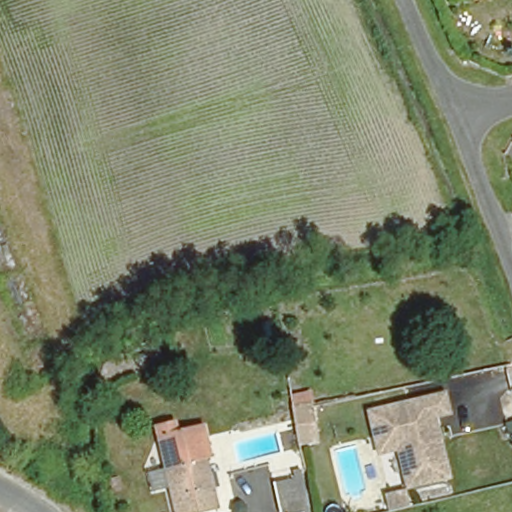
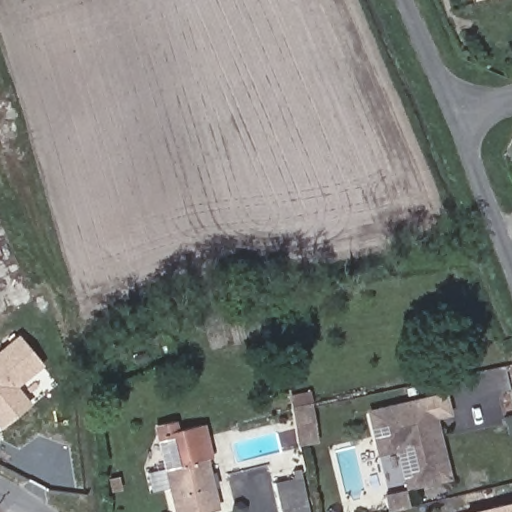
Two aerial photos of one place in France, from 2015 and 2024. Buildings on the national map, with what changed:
new [(2,429),(0,426),(0,350),(19,334),(44,365),(18,387),(31,404),(2,429)]
unchanged [(407,485),(398,446),(378,451),(369,411),(444,394),(447,412),(433,415),(436,428),(447,476),(407,485)]
unchanged [(221,482),(215,483),(220,504),(187,512),(180,512),(173,483),(155,487),(150,467),(168,463),(161,429),(159,420),(175,417),(177,426),(205,420),(212,454),(208,454),(211,470),(218,469),(221,482)]
unchanged [(291,511),(285,512),(282,512),(277,483),(305,478),(312,508),(313,512),(291,512),(291,511)]
new [(512,502),(512,512),(472,512),(512,502)]

